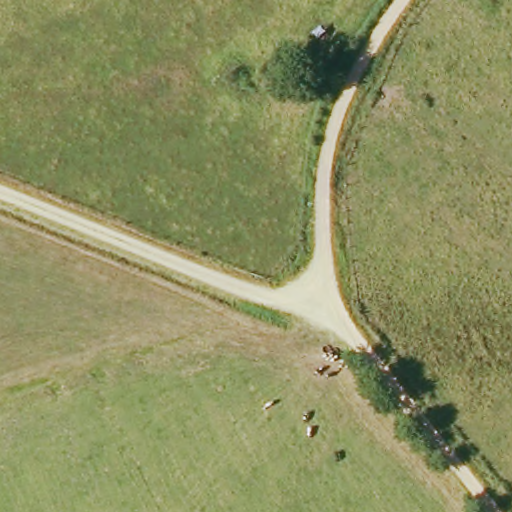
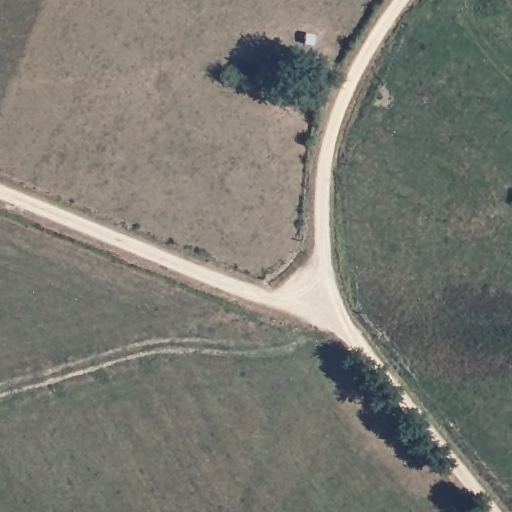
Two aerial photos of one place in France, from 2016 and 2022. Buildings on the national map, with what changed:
unchanged [(309,58),(314,44),(338,52),(333,66),(309,58)]

